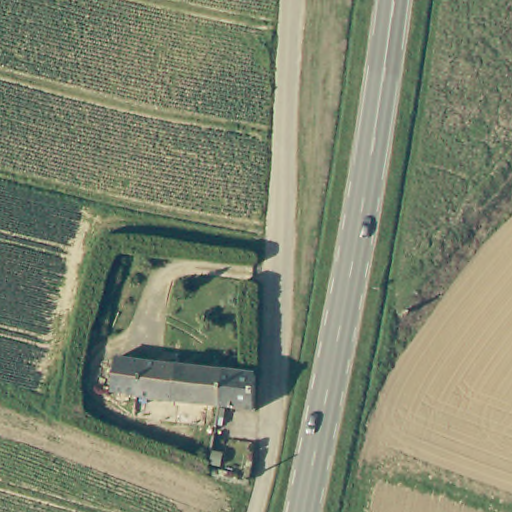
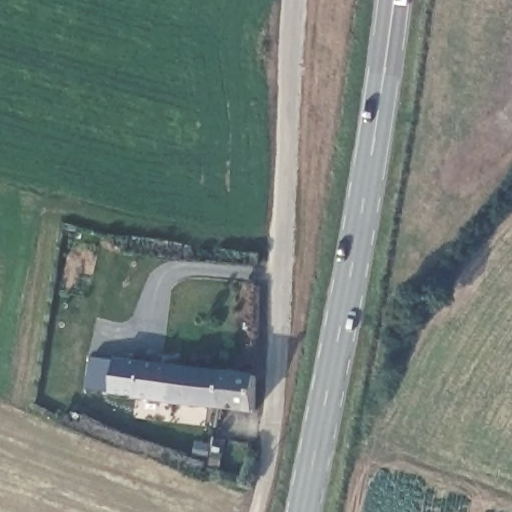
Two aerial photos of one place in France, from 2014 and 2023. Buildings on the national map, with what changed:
unchanged [(247,407),(246,411),(145,401),(145,398),(116,395),(119,364),(251,378),(247,407)]

